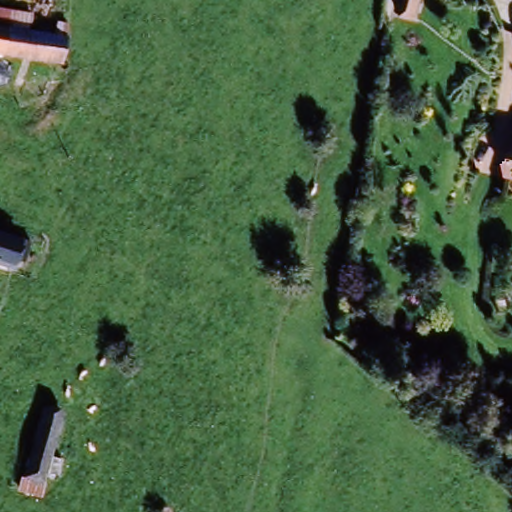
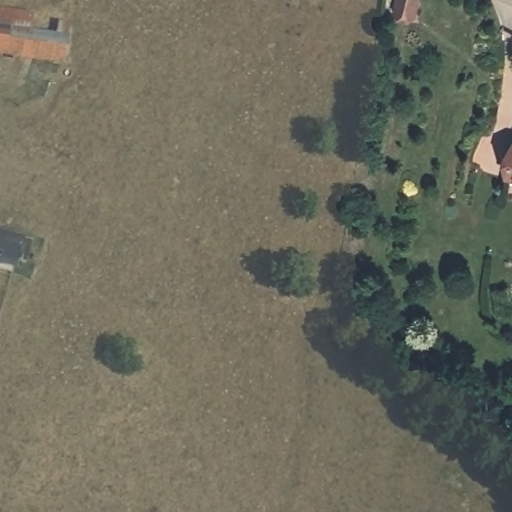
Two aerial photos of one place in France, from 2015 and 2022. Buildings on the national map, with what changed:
unchanged [(395,0),(414,0),(411,19),(392,15),(395,0)]
unchanged [(0,56),(0,29),(65,38),(60,65),(0,56)]
unchanged [(505,169),(512,146),(512,171),(505,169)]
unchanged [(0,261),(0,231),(29,239),(21,266),(0,261)]
unchanged [(26,468),(42,407),(61,413),(45,472),(26,468)]

